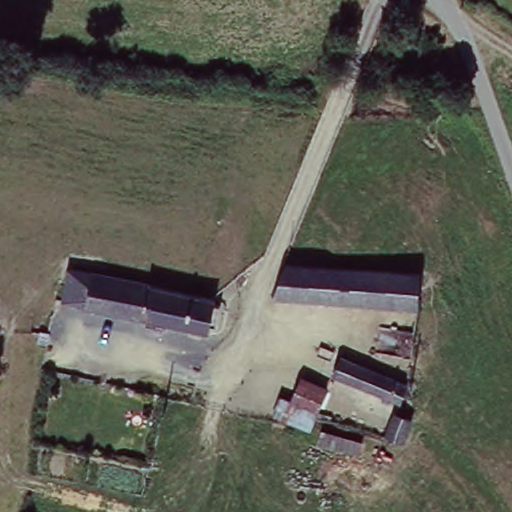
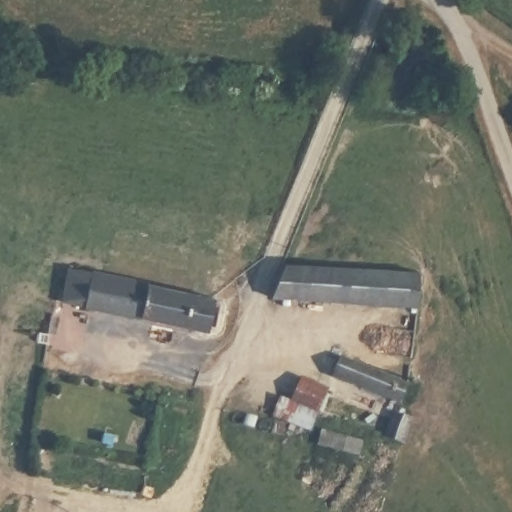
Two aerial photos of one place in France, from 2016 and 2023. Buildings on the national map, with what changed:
unchanged [(69,263),(207,299),(206,308),(215,310),(210,331),(202,329),(200,335),(60,302),(69,263)]
unchanged [(417,275),(413,311),(263,305),(282,266),(417,275)]
unchanged [(11,363),(3,360),(6,342),(15,345),(11,363)]
unchanged [(406,404),(340,373),(347,358),(412,383),(406,404)]
unchanged [(305,380),(329,393),(318,412),(293,401),(305,380)]
unchanged [(387,417),(400,422),(395,443),(381,441),(387,417)]

